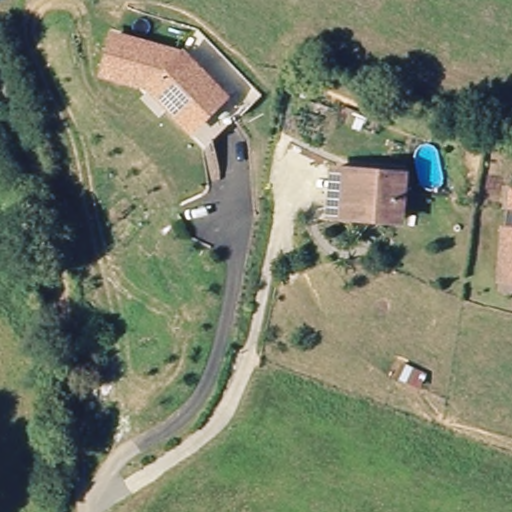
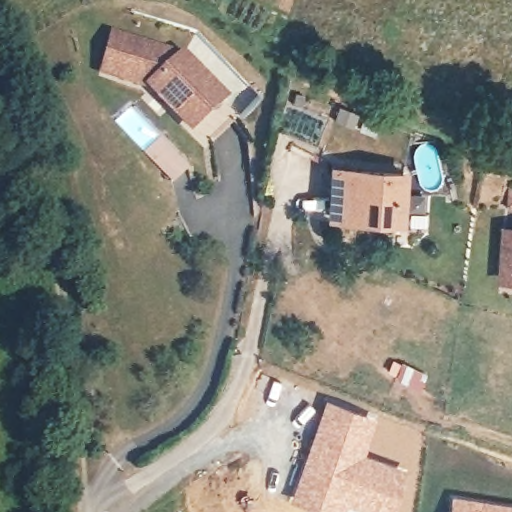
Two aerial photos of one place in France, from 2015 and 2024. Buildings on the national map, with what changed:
unchanged [(108,75),(120,38),(189,58),(226,99),(193,130),(175,111),(156,90),(108,75)]
unchanged [(331,170),(403,176),(400,221),(328,215),(331,170)]
unchanged [(495,283),(500,234),(512,234),(512,284),(495,283)]
new [(378,419),(364,454),(409,471),(393,512),(366,512),(345,504),(342,512),(319,512),(289,501),(326,402),(378,419)]
new [(512,505),(512,512),(450,512),(453,496),(512,505)]

